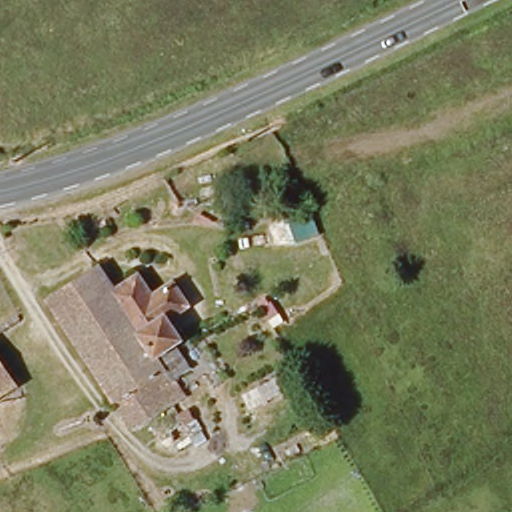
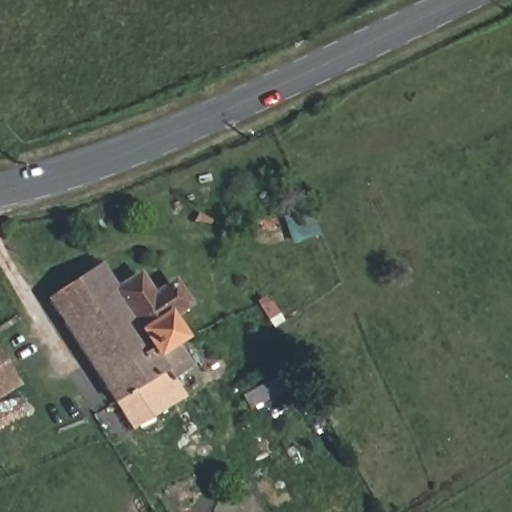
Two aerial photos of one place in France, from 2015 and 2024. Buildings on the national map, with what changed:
unchanged [(45,301),(102,263),(120,288),(141,273),(155,293),(179,280),(194,305),(179,319),(192,338),(165,359),(185,397),(135,431),(45,301)]
unchanged [(20,387),(0,399),(0,358),(20,387)]

